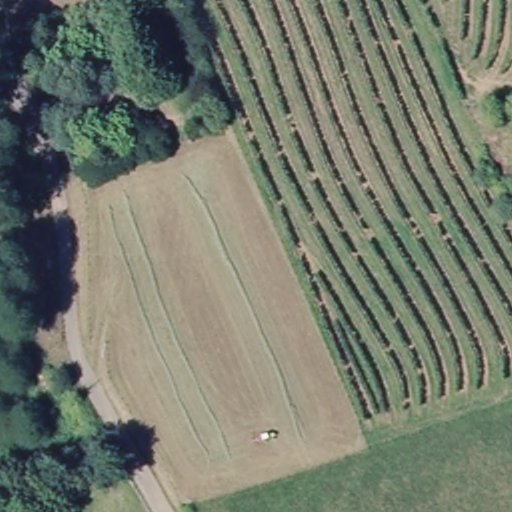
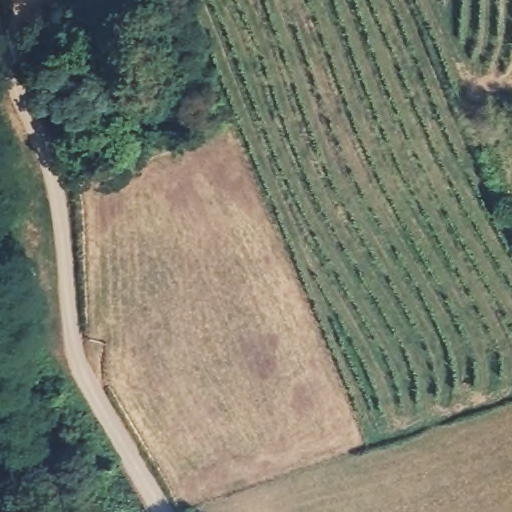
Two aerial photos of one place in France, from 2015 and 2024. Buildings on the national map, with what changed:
unchanged [(149,20),(165,83),(135,97),(112,39),(149,20)]

